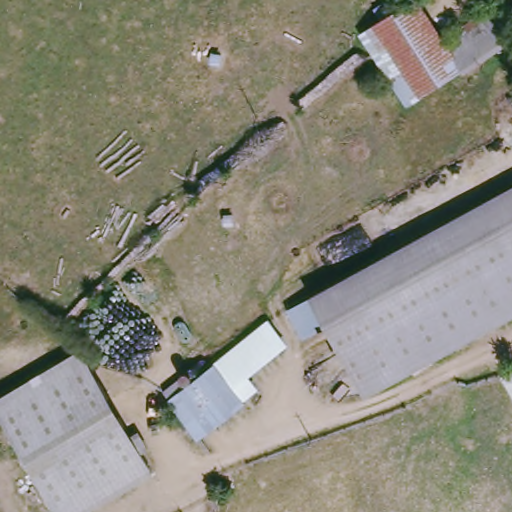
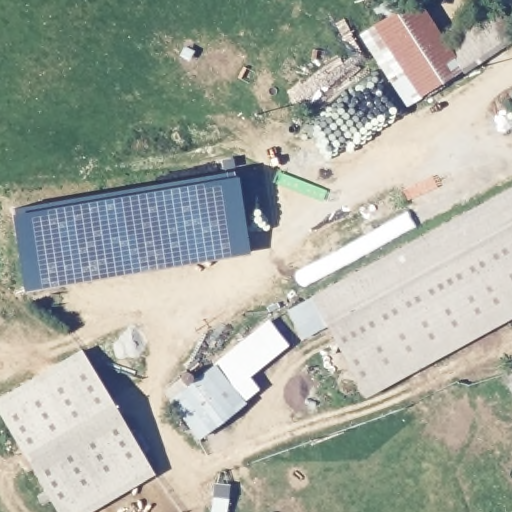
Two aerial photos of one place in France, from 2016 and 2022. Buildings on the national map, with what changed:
unchanged [(422,0),(448,38),(500,5),(512,20),(512,44),(406,110),(359,35),(416,0),(422,0)]
new [(24,290),(13,209),(234,170),(249,252),(24,290)]
unchanged [(288,308),(311,295),(512,190),(512,319),(364,397),(326,323),(302,335),(288,308)]
unchanged [(236,352),(273,323),(288,344),(253,371),(246,376),(255,388),(240,399),(244,404),(198,439),(170,402),(236,352)]
unchanged [(149,476),(86,512),(56,512),(0,409),(0,400),(83,354),(149,476)]

